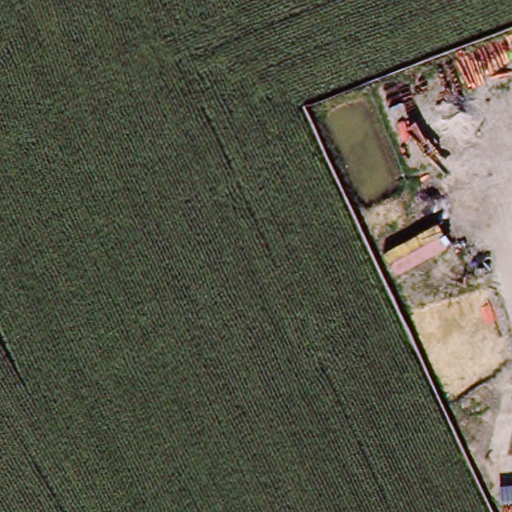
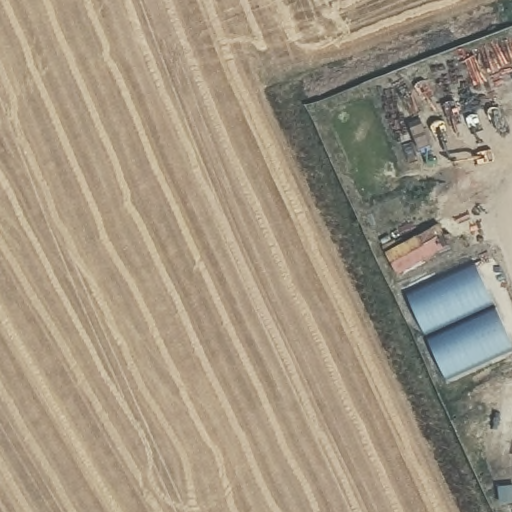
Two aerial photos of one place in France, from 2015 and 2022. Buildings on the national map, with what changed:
new [(477,265),(512,345),(512,350),(445,382),(405,292),(477,265)]

